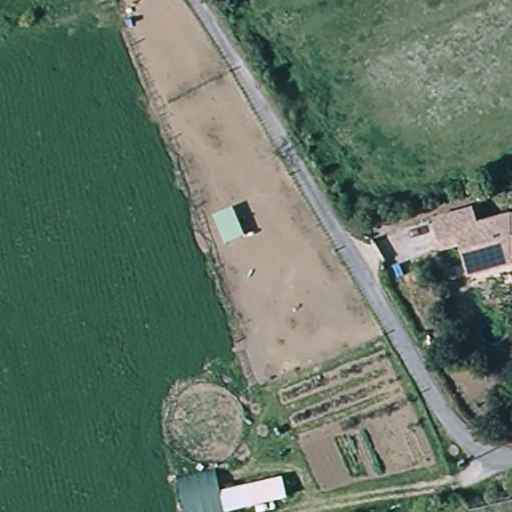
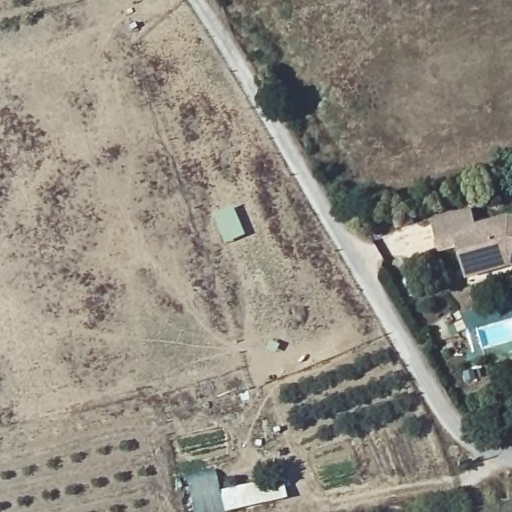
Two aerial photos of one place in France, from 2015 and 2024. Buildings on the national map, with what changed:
unchanged [(439,250),(431,220),(470,202),(481,223),(512,211),(512,267),(471,277),(457,250),(439,250)]
unchanged [(260,476),(270,500),(226,508),(222,490),(260,476)]

